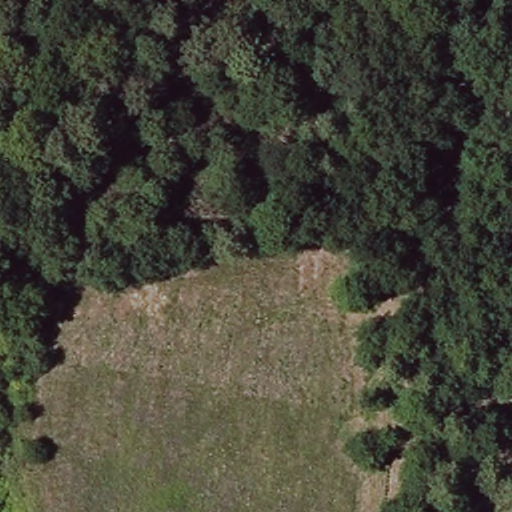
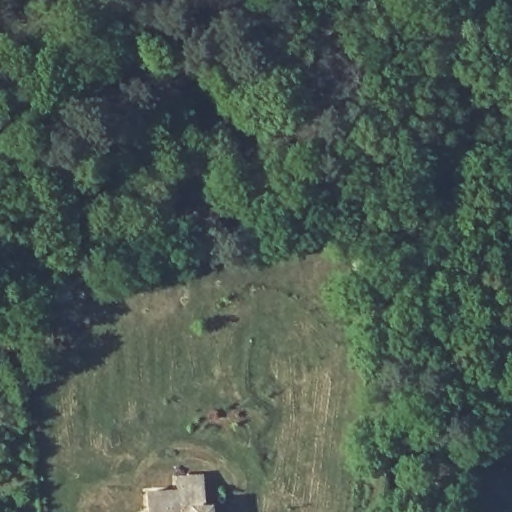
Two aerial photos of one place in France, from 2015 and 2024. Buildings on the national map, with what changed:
new [(146,491),(176,489),(176,476),(204,474),(206,505),(211,504),(212,512),(147,512),(146,491)]

